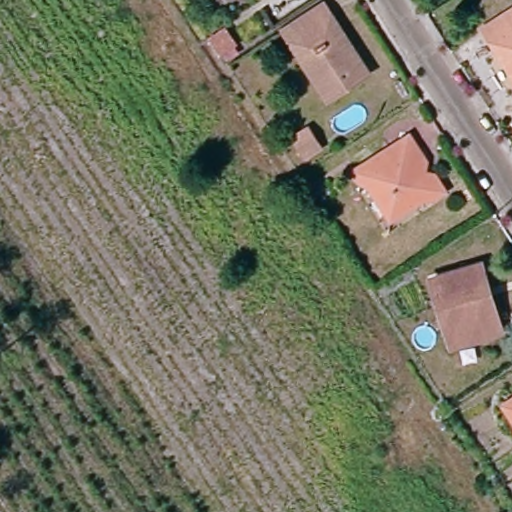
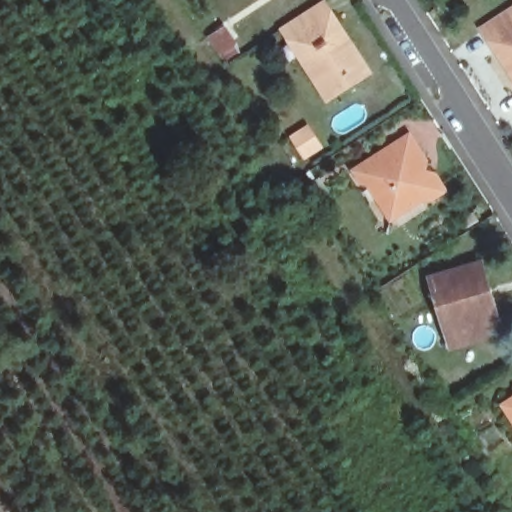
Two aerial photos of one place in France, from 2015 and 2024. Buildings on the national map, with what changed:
unchanged [(365,64),(321,91),(300,57),(304,54),(288,29),(321,7),(338,33),(342,30),(365,64)]
unchanged [(512,10),(512,78),(481,29),(512,10)]
unchanged [(220,57),(218,58),(206,39),(208,38),(225,27),(237,46),(220,57)]
unchanged [(324,149),(303,162),(288,137),(309,125),(324,149)]
unchanged [(410,137),(426,162),(424,173),(436,177),(446,192),(431,202),(426,198),(390,222),(368,185),(360,185),(354,171),(410,137)]
unchanged [(485,278),(480,280),(490,314),(495,312),(500,329),(465,340),(460,322),(445,327),(431,275),(480,261),(485,278)]
unchanged [(512,398),(512,414),(504,402),(512,398)]

